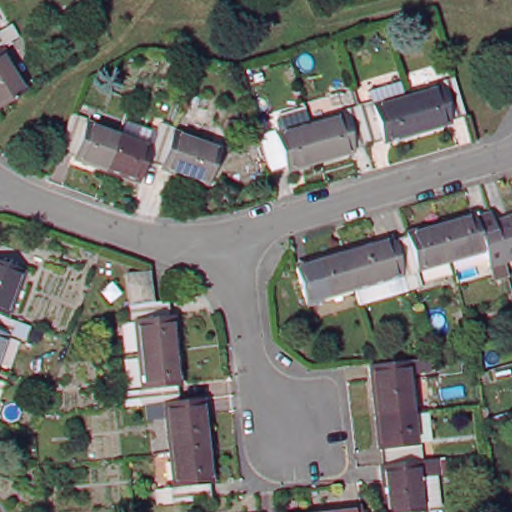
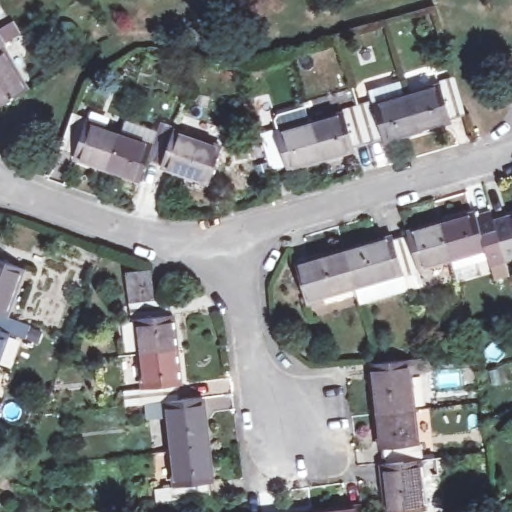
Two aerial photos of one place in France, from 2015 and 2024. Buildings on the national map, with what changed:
unchanged [(23,36),(10,44),(7,46),(0,49),(0,50),(0,33),(15,24),(23,36)]
unchanged [(7,46),(32,90),(16,99),(0,109),(0,50),(0,49),(7,46)]
unchanged [(445,86),(444,81),(458,77),(462,90),(469,114),(455,118),(457,122),(421,132),(413,106),(410,96),(445,86)]
unchanged [(377,101),(373,89),(405,79),(410,96),(413,106),(421,132),(388,142),(387,138),(372,142),(361,105),(377,101)]
unchanged [(349,114),(347,109),(361,105),(372,142),(358,146),(359,149),(323,159),(314,124),(349,114)]
unchanged [(78,156),(79,153),(66,148),(68,141),(78,114),(92,119),(91,122),(122,134),(110,168),(78,156)]
unchanged [(131,121),(162,133),(166,122),(178,127),(178,129),(165,163),(153,159),(145,181),(110,168),(122,134),(125,135),(131,121)]
unchanged [(323,159),(292,168),(291,165),(275,170),(265,133),(280,128),(282,133),(314,124),(323,159)]
unchanged [(178,129),(227,148),(215,183),(165,165),(165,163),(178,129)]
unchanged [(475,213),(476,217),(490,214),(493,226),(503,262),(507,276),(495,280),(485,248),(450,258),(440,223),(475,213)]
unchanged [(493,226),(510,220),(510,218),(512,217),(512,259),(503,262),(493,226)]
unchanged [(408,235),(407,232),(440,223),(450,258),(417,268),(422,285),(407,290),(403,275),(402,272),(393,240),(408,235)]
unchanged [(346,262),(343,251),(392,236),(393,240),(402,272),(403,275),(407,290),(358,304),(358,302),(353,286),(346,262)]
unchanged [(312,260),(343,251),(346,262),(353,286),(321,296),(322,300),(308,304),(298,266),(312,263),(312,260)]
unchanged [(10,317),(0,314),(0,258),(28,268),(10,317)]
unchanged [(135,319),(133,304),(131,283),(130,273),(155,271),(156,280),(158,301),(170,299),(171,315),(177,314),(182,349),(145,353),(140,318),(135,319)]
unchanged [(0,314),(10,317),(34,326),(29,340),(12,334),(0,366),(0,314)]
unchanged [(131,392),(148,390),(145,353),(182,349),(187,385),(182,386),(184,401),(173,402),(171,402),(132,406),(131,392)]
unchanged [(377,373),(380,372),(388,371),(433,366),(435,380),(415,383),(419,419),(383,423),(377,373)]
unchanged [(171,402),(173,402),(184,401),(207,398),(213,449),(177,453),(171,402)]
unchanged [(0,420),(0,404),(5,406),(0,420)]
unchanged [(419,419),(422,452),(427,452),(429,469),(391,473),(388,457),(387,457),(383,423),(419,419)]
unchanged [(217,482),(212,483),(213,499),(167,504),(164,505),(162,489),(180,487),(177,453),(213,449),(217,482)]
unchanged [(445,467),(445,483),(427,486),(429,512),(393,512),(388,474),(391,473),(429,469),(442,468),(445,467)]
unchanged [(362,512),(311,512),(311,511),(362,506),(362,512)]
unchanged [(307,512),(311,511),(311,512),(307,512)]

